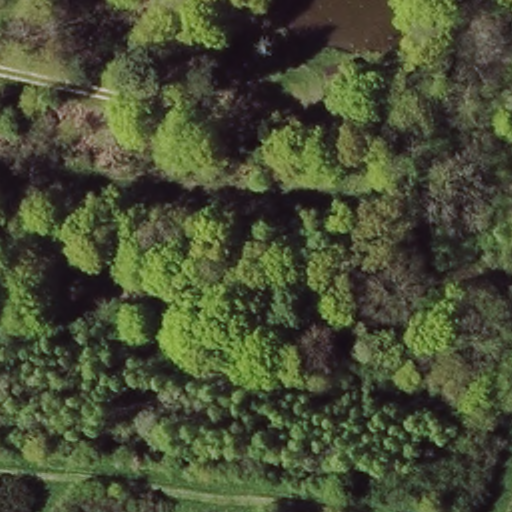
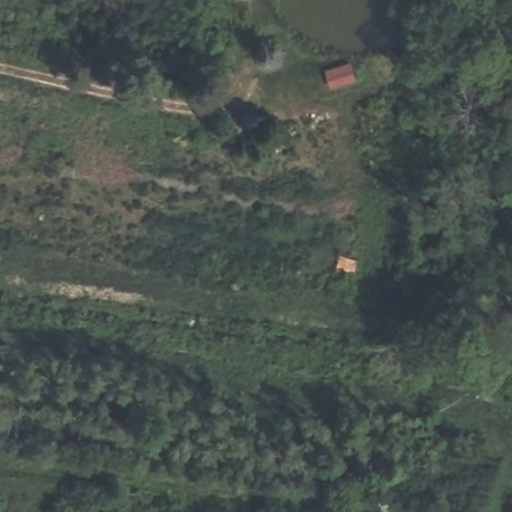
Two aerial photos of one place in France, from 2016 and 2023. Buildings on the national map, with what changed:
unchanged [(282,47),(275,62),(260,57),(269,42),(282,47)]
unchanged [(357,260),(354,277),(338,274),(340,258),(357,260)]

